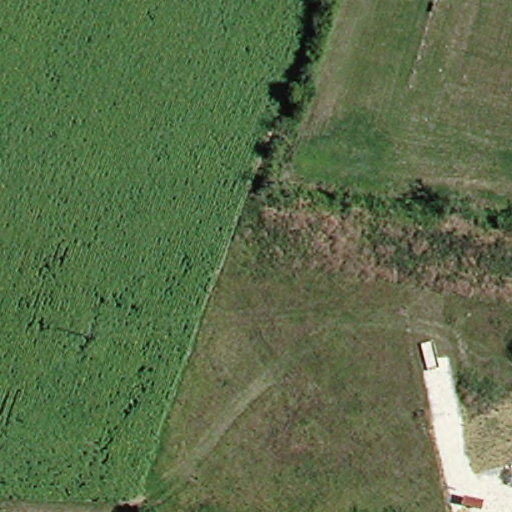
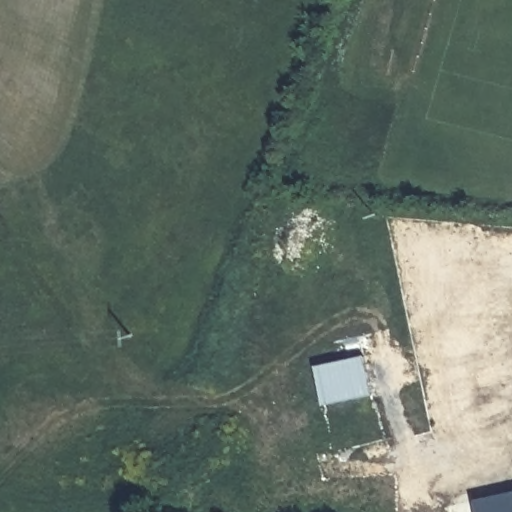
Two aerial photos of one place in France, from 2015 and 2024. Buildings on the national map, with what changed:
new [(372,395),(323,406),(315,367),(365,356),(372,395)]
unchanged [(512,493),(512,512),(477,512),(475,500),(512,493)]

